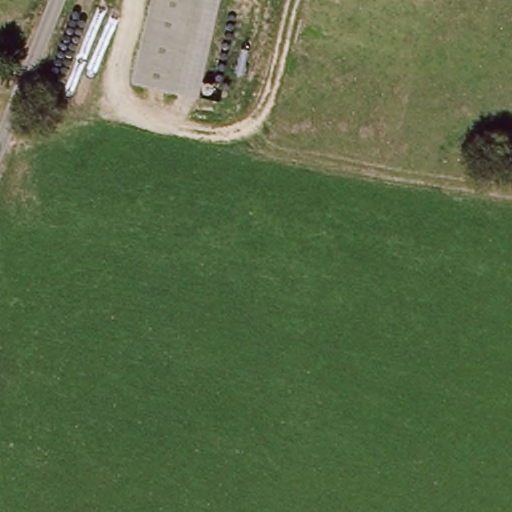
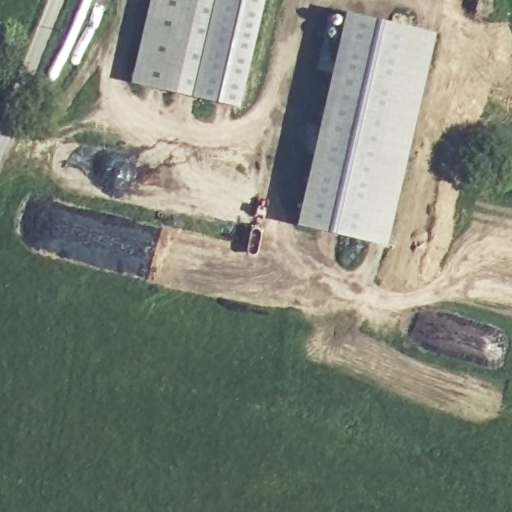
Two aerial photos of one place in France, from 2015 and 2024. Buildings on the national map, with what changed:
unchanged [(199,92),(177,88),(137,79),(153,0),(218,0),(199,92)]
new [(242,101),(199,92),(218,0),(266,0),(242,101)]
new [(436,34),(388,243),(297,225),(347,12),(436,34)]

